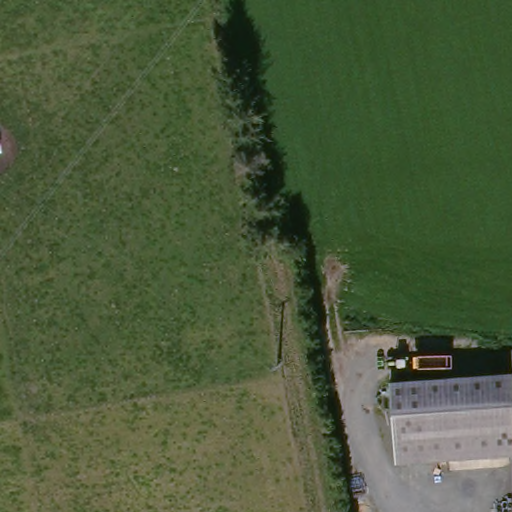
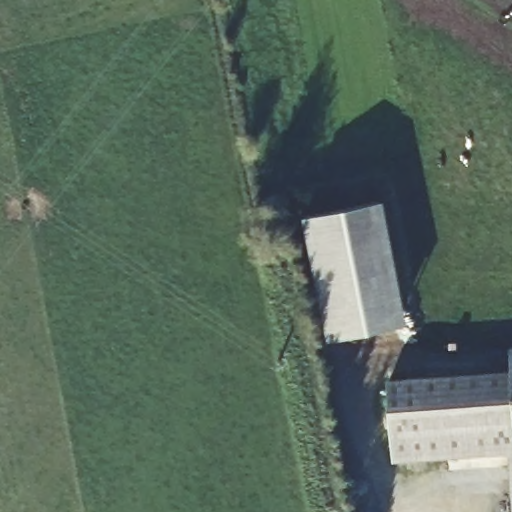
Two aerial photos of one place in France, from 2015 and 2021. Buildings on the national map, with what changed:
new [(375,201),(406,322),(333,340),(302,219),(375,201)]
unchanged [(512,368),(510,353),(512,353),(512,368)]
unchanged [(390,392),(512,378),(512,460),(400,473),(390,392)]

